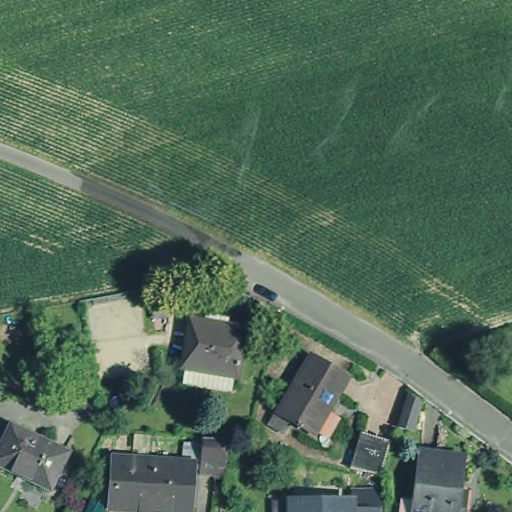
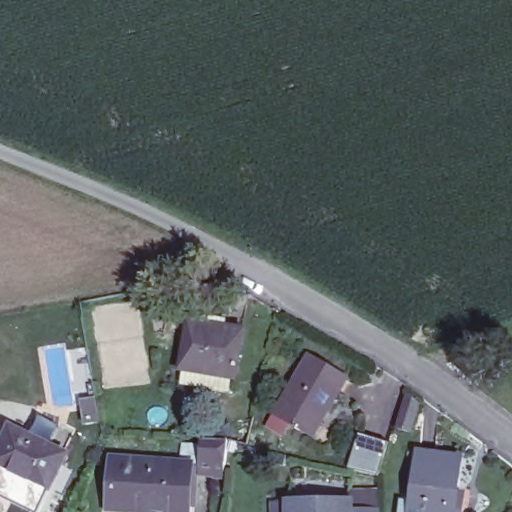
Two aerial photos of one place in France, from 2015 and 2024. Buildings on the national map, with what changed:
unchanged [(176,384),(178,370),(188,318),(203,321),(209,314),(228,318),(226,325),(243,328),(233,378),(231,394),(176,384)]
unchanged [(311,357),(349,380),(330,412),(326,410),(310,437),(300,432),(299,434),(294,430),(295,428),(275,417),(311,357)]
unchanged [(414,433),(398,429),(406,393),(413,388),(426,403),(414,433)]
unchanged [(0,458),(17,429),(70,459),(51,494),(0,464),(0,458)]
unchanged [(351,469),(363,433),(389,442),(379,476),(351,469)]
unchanged [(408,506),(417,458),(462,466),(454,512),(415,512),(416,508),(408,506)]
unchanged [(138,504),(138,512),(113,511),(113,494),(109,493),(110,459),(191,461),(191,505),(138,504)]
unchanged [(366,500),(380,500),(381,512),(366,512),(366,500)]
unchanged [(356,512),(282,512),(283,505),(298,505),(356,508),(356,512)]

